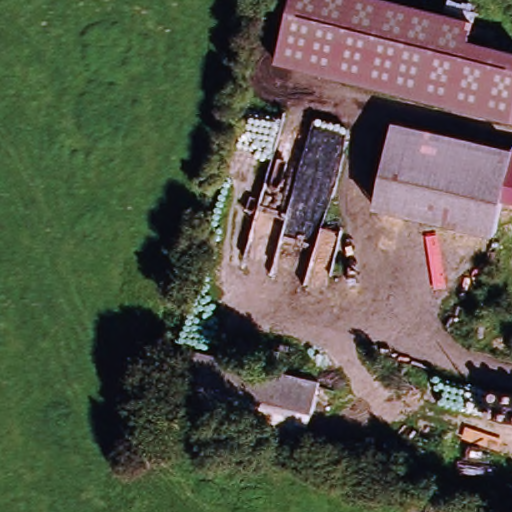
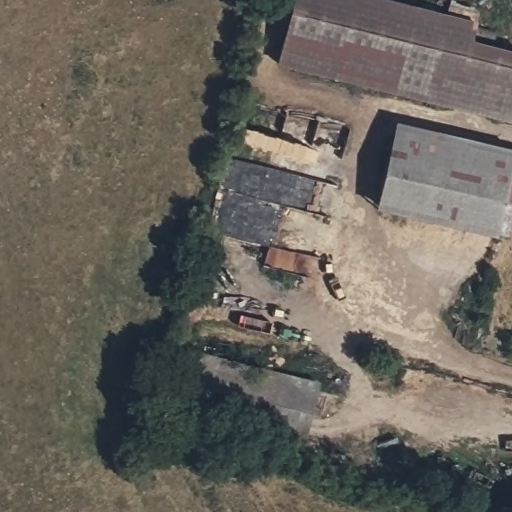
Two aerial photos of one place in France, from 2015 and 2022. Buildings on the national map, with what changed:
unchanged [(418,27),(403,90),(402,95),(277,65),(294,0),(393,0),(480,22),(475,40),(467,38),(418,27)]
unchanged [(418,27),(512,49),(512,116),(403,90),(418,27)]
unchanged [(375,205),(396,121),(512,150),(512,162),(503,199),(495,234),(375,205)]
unchanged [(512,162),(512,202),(503,199),(512,162)]
unchanged [(321,385),(307,445),(173,412),(187,352),(321,385)]

